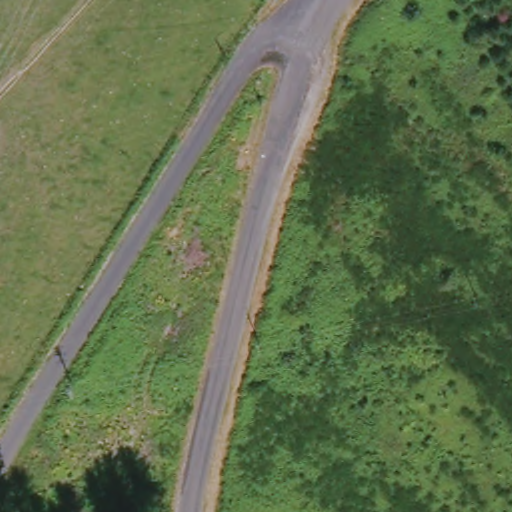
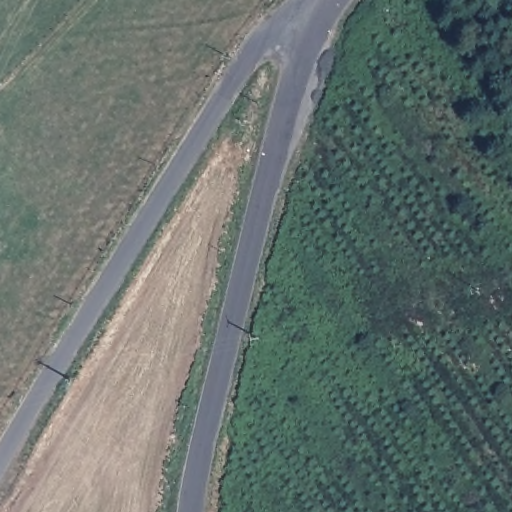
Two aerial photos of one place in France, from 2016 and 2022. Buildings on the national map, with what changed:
[]

